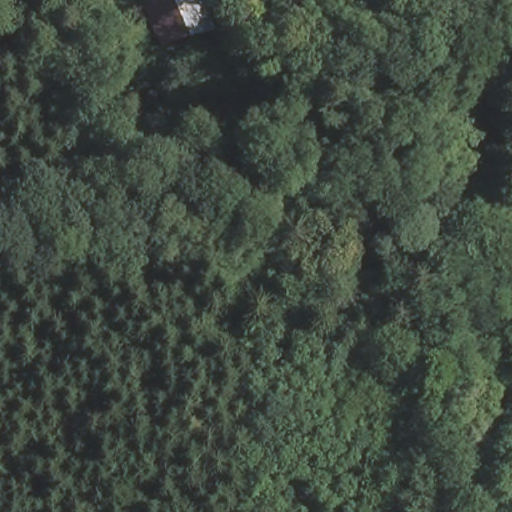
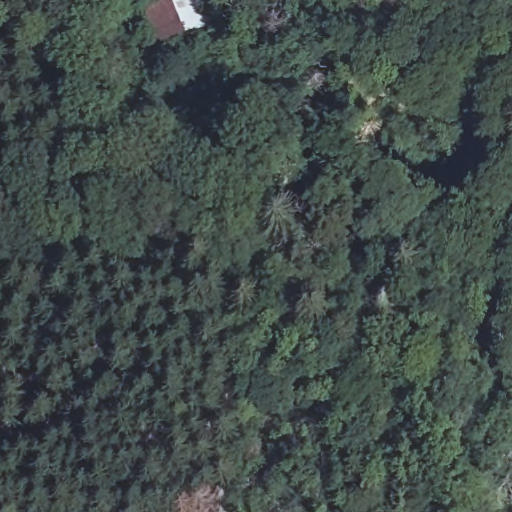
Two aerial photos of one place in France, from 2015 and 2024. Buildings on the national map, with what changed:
unchanged [(150,0),(153,0),(211,0),(218,26),(173,37),(159,41),(157,31),(157,29),(150,0)]
unchanged [(260,255),(290,257),(290,285),(260,283),(260,255)]

